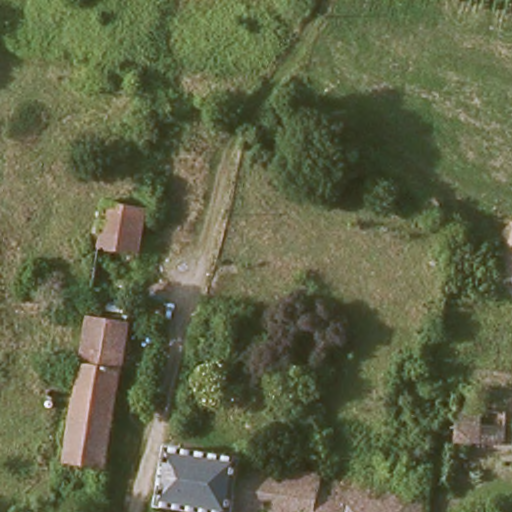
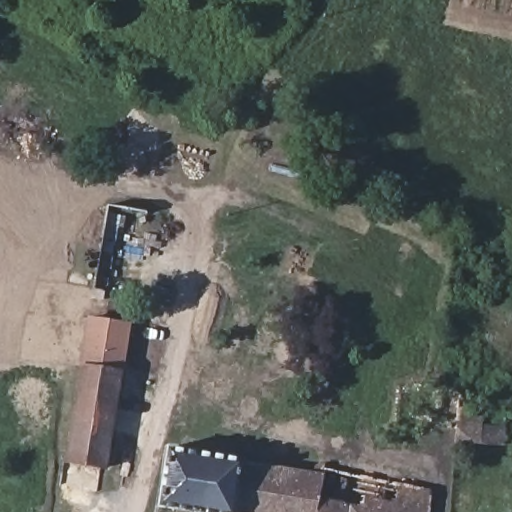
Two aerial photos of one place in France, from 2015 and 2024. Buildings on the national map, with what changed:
unchanged [(151,212),(139,295),(98,289),(111,204),(151,212)]
unchanged [(109,469),(69,463),(94,314),(136,319),(109,469)]
unchanged [(506,446),(459,445),(460,407),(509,413),(506,446)]
unchanged [(167,512),(177,453),(258,465),(259,471),(357,486),(359,473),(371,476),(369,480),(430,492),(430,512),(170,512),(167,512)]

